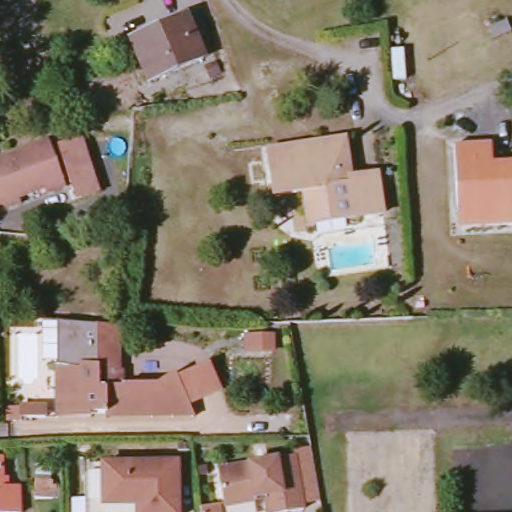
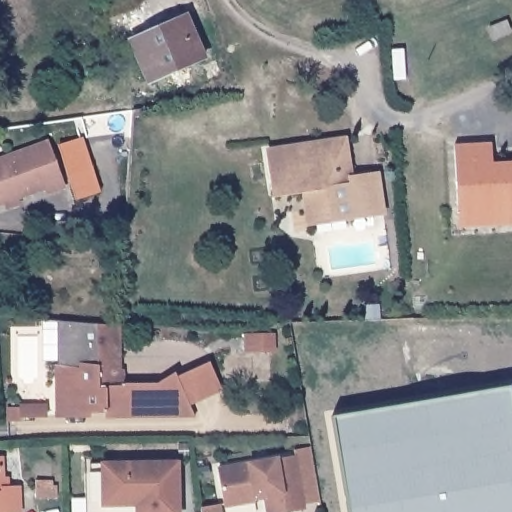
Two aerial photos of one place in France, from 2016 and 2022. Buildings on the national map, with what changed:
unchanged [(186,19),(203,62),(145,85),(130,42),(186,19)]
unchanged [(80,198),(62,144),(85,134),(103,187),(80,198)]
unchanged [(350,142),(351,182),(375,181),(377,224),(325,227),(323,190),(270,192),(267,145),(350,142)]
unchanged [(458,209),(453,147),(478,144),(479,152),(490,151),(491,163),(512,163),(512,225),(500,226),(460,229),(458,209)]
unchanged [(50,191),(0,209),(0,164),(36,151),(50,191)]
unchanged [(55,367),(80,366),(81,345),(82,322),(115,325),(113,344),(114,369),(117,382),(165,382),(172,376),(187,407),(190,414),(65,414),(55,414),(56,391),(55,367)]
unchanged [(211,365),(221,389),(187,407),(172,376),(211,365)]
new [(351,512),(333,418),(512,385),(512,512),(351,512)]
unchanged [(20,409),(36,409),(45,409),(45,418),(35,418),(20,419),(20,409)]
unchanged [(225,511),(217,468),(298,457),(306,512),(268,512),(265,501),(225,511)]
unchanged [(187,512),(149,512),(149,502),(115,503),(113,463),(185,461),(187,512)]
unchanged [(113,463),(115,503),(149,502),(149,512),(96,512),(95,463),(113,463)]
unchanged [(14,512),(0,512),(0,486),(14,486),(14,512)]
unchanged [(220,506),(221,512),(200,512),(200,509),(220,506)]

